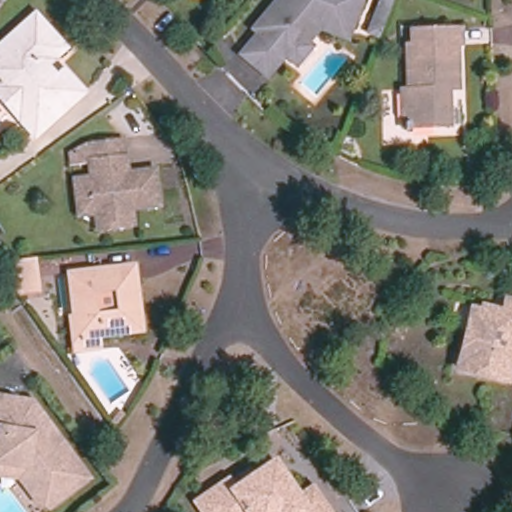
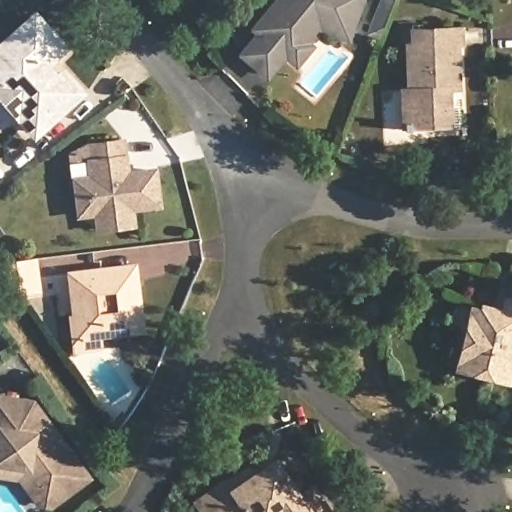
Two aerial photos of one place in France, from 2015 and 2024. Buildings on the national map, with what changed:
unchanged [(319,25),(304,41),(309,45),(296,61),(284,51),(267,73),(243,53),(273,17),(268,12),(278,0),(360,0),(350,26),(347,35),(319,25)]
unchanged [(369,31),(379,5),(381,0),(392,0),(389,9),(379,35),(369,31)]
unchanged [(54,71),(61,65),(85,91),(34,134),(0,101),(0,39),(33,10),(68,47),(48,65),(54,71)]
unchanged [(402,41),(407,40),(407,26),(456,25),(457,39),(452,39),(454,84),(444,84),(446,121),(398,122),(397,86),(403,86),(402,41)]
unchanged [(126,172),(156,171),(159,208),(126,210),(127,229),(102,230),(101,215),(87,216),(85,177),(89,177),(89,162),(90,162),(90,151),(84,156),(78,148),(89,139),(124,138),(126,172)]
unchanged [(14,295),(0,276),(0,261),(7,260),(16,273),(25,286),(21,289),(14,295)]
unchanged [(78,351),(76,338),(68,275),(133,267),(141,330),(100,335),(101,348),(78,351)]
unchanged [(512,310),(512,353),(507,376),(457,364),(472,305),(482,308),(483,303),(503,308),(512,310)]
unchanged [(0,471),(0,393),(35,398),(91,474),(54,501),(48,500),(40,491),(34,490),(22,475),(0,471)]
unchanged [(272,512),(206,512),(195,496),(227,475),(233,485),(273,457),(297,493),(311,484),(330,512),(278,512),(276,509),(272,512)]

